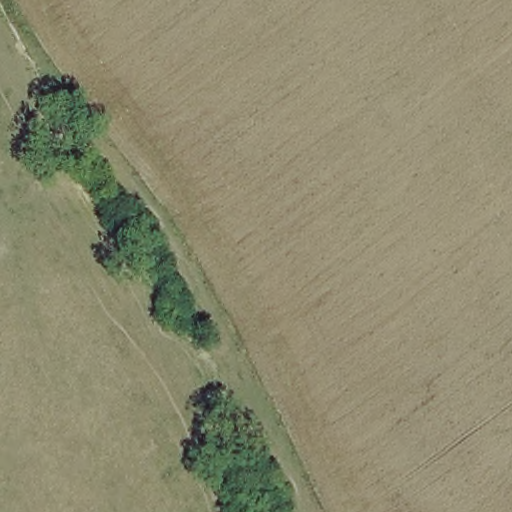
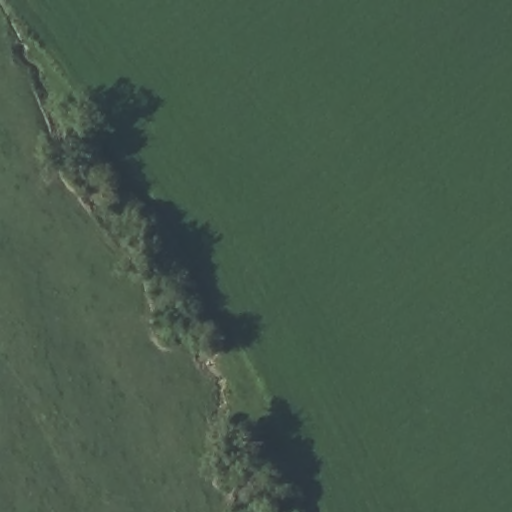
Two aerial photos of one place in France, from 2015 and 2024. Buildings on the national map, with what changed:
[]

